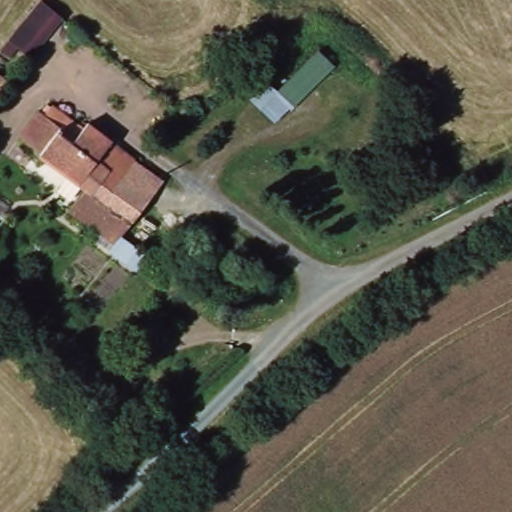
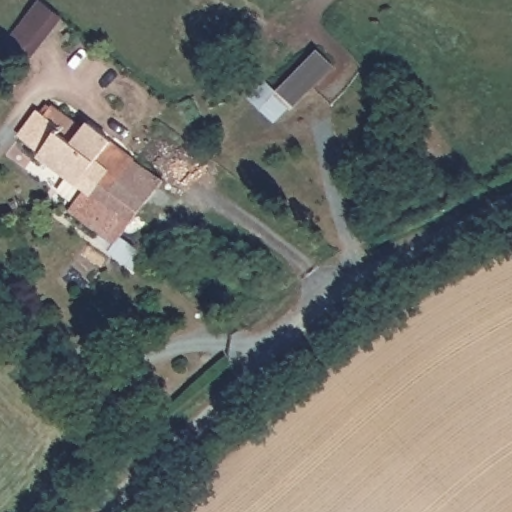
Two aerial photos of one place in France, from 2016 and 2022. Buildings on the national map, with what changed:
unchanged [(6,40),(38,0),(40,0),(62,16),(29,58),(6,40)]
unchanged [(248,99),(265,80),(277,90),(318,48),(334,65),(288,112),(287,110),(274,124),(248,99)]
unchanged [(108,250),(92,240),(96,232),(68,212),(84,191),(38,156),(42,150),(16,135),(36,110),(39,111),(44,101),(50,105),(53,103),(84,126),(88,121),(111,140),(165,180),(119,236),(148,257),(138,272),(108,250)]

